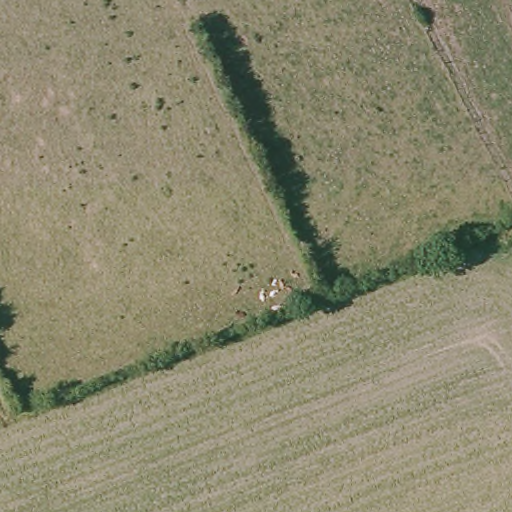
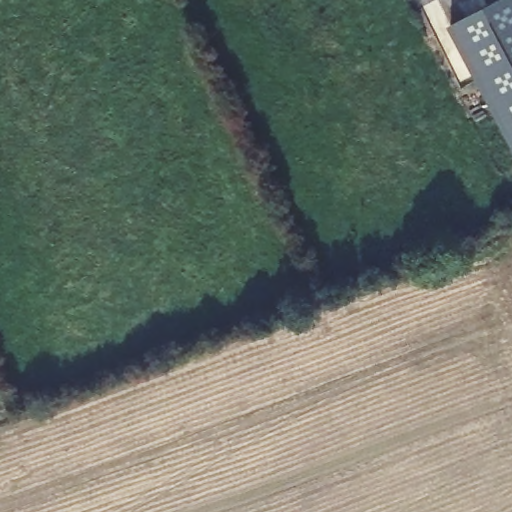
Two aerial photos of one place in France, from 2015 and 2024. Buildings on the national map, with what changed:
new [(510,0),(512,0),(512,139),(454,30),(510,0)]

